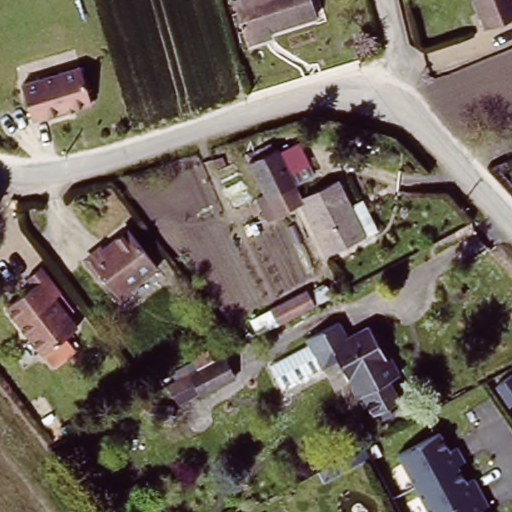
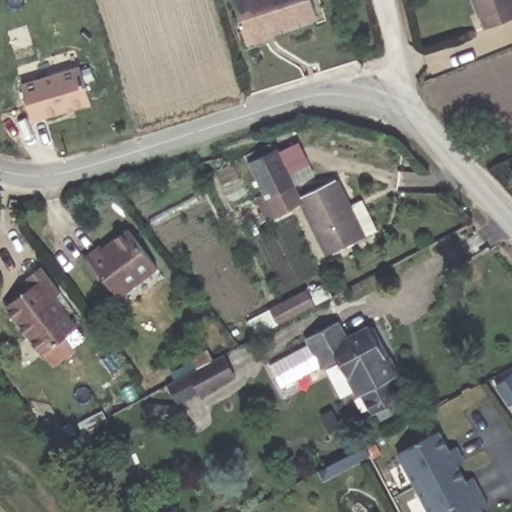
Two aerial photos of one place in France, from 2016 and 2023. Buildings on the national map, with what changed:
unchanged [(237,0),(307,0),(312,16),(261,34),(263,40),(245,46),(230,3),(237,0)]
unchanged [(469,0),(512,0),(512,21),(511,19),(483,29),(478,18),(476,18),(469,0)]
unchanged [(87,70),(99,103),(40,121),(28,86),(87,70)]
unchanged [(275,154),(300,201),(270,217),(245,169),(275,154)]
unchanged [(300,201),(335,182),(350,210),(363,203),(379,231),(328,256),(300,201)]
unchanged [(135,236),(155,277),(111,299),(90,259),(135,236)]
unchanged [(37,288),(32,280),(50,272),(63,300),(51,306),(67,338),(30,356),(5,306),(37,288)]
unchanged [(264,307),(290,293),(298,307),(272,321),(264,307)]
unchanged [(333,364),(317,372),(280,391),(266,369),(305,349),(301,343),(350,319),(360,336),(381,324),(399,357),(405,355),(414,372),(385,385),(396,405),(367,420),(357,400),(353,402),(333,364)]
unchanged [(179,413),(166,389),(208,367),(217,384),(221,392),(191,407),(179,413)]
unchanged [(512,380),(512,401),(507,403),(493,380),(507,373),(512,380)]
unchanged [(164,406),(170,420),(148,428),(143,414),(164,406)]
unchanged [(388,458),(435,432),(479,512),(420,512),(388,458)]

